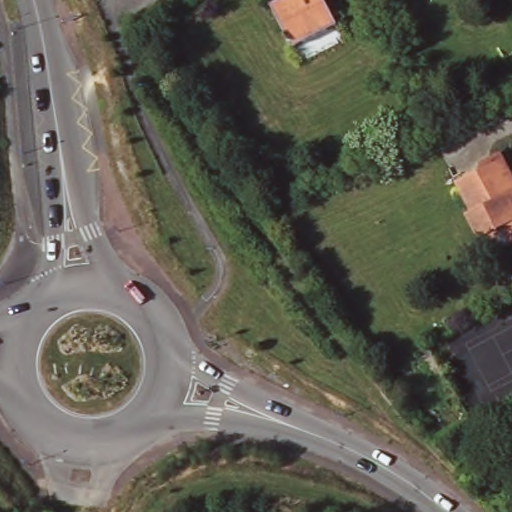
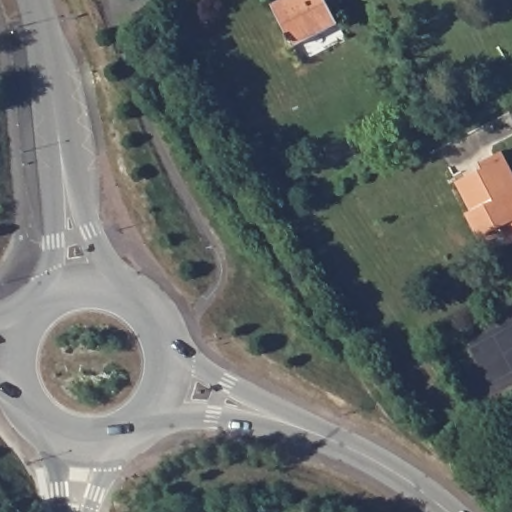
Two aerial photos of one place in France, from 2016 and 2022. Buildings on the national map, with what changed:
unchanged [(282,0),(326,0),(338,25),(293,48),(272,5),(282,0)]
unchanged [(448,183),(475,170),(471,164),(494,153),(512,189),(512,241),(503,246),(486,255),(477,238),(448,183)]

